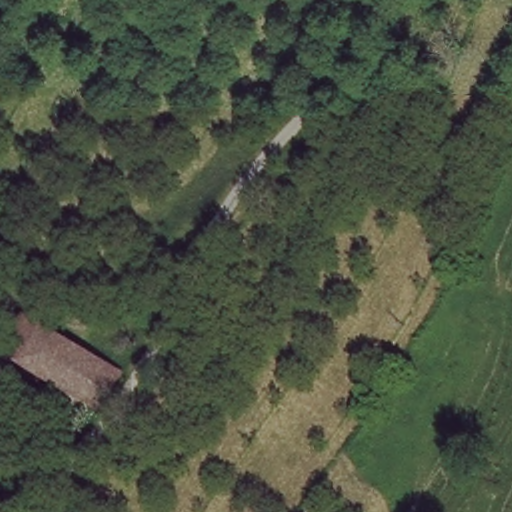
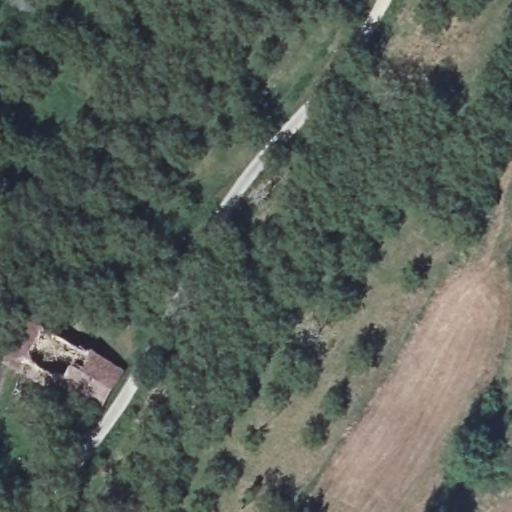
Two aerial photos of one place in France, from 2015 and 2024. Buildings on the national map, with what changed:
unchanged [(92,408),(91,409),(4,352),(23,318),(111,370),(92,408)]

